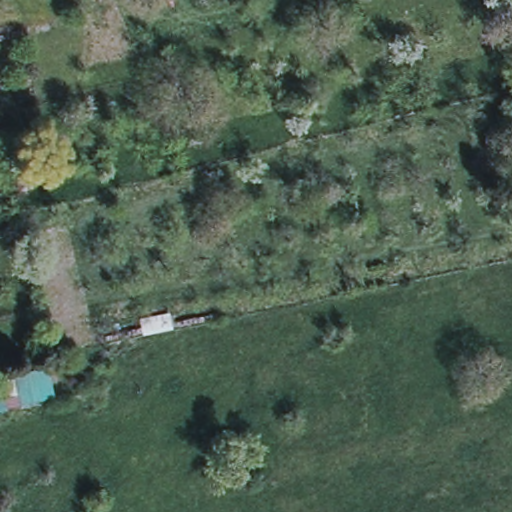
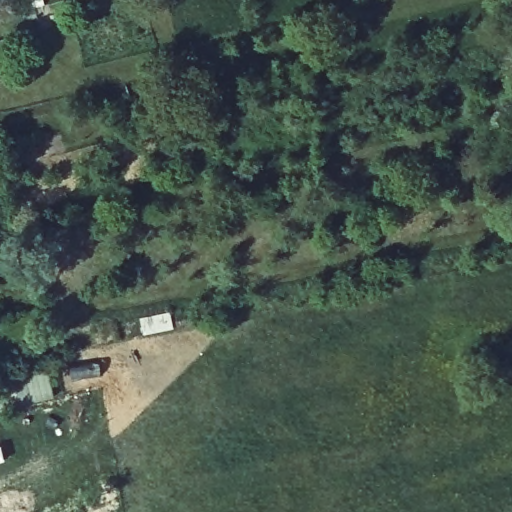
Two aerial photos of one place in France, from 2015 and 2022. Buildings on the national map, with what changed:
unchanged [(13,373),(48,367),(50,381),(53,398),(19,405),(13,373)]
unchanged [(0,413),(0,398),(3,397),(6,412),(0,413)]

